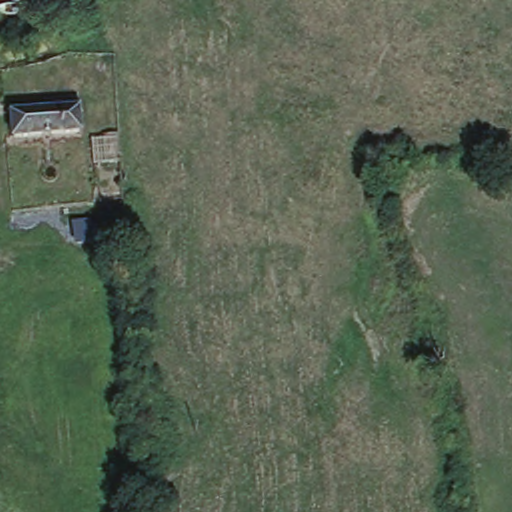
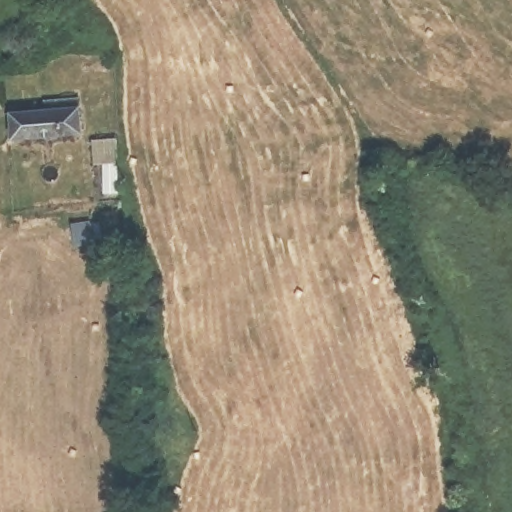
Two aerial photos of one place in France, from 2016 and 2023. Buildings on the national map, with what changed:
unchanged [(75,138),(5,136),(7,108),(41,111),(42,97),(54,97),(77,100),(75,138)]

